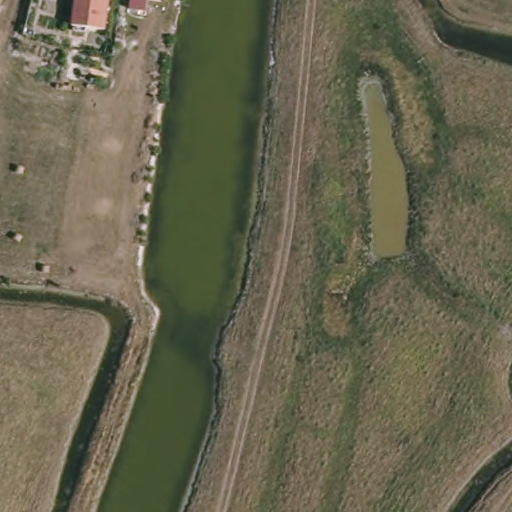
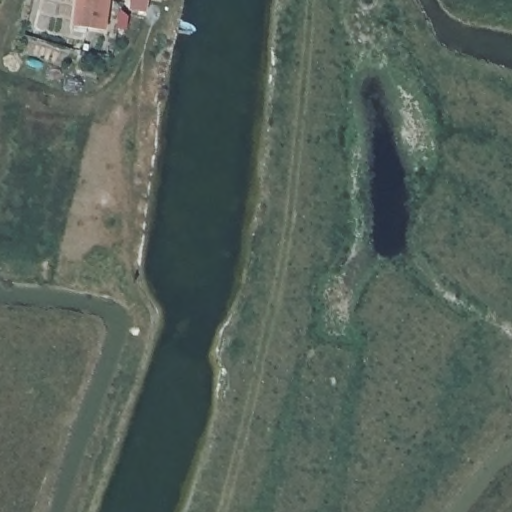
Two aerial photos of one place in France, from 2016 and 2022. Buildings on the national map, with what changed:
unchanged [(71,26),(76,0),(108,0),(102,32),(71,26)]
unchanged [(138,0),(147,0),(147,1),(138,0)]

